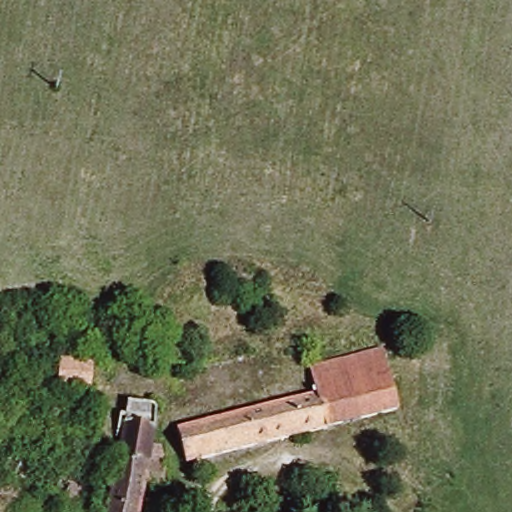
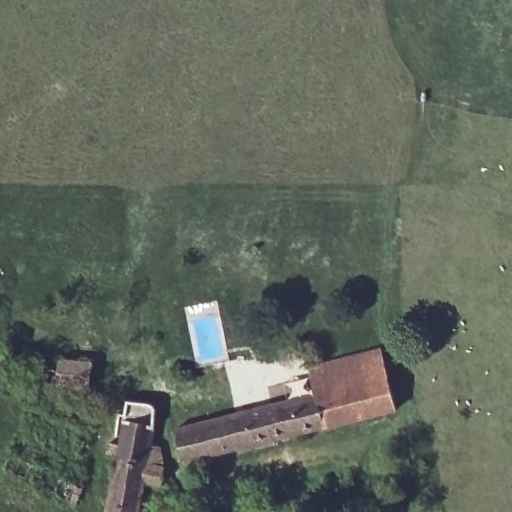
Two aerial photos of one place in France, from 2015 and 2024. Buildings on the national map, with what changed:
unchanged [(220,397),(267,383),(271,391),(277,389),(276,385),(299,379),(303,384),(322,378),(318,369),(387,350),(403,410),(191,463),(183,432),(227,419),(220,397)]
unchanged [(114,455),(118,438),(126,439),(131,405),(164,410),(157,444),(170,446),(165,484),(149,480),(144,512),(116,512),(124,456),(114,455)]

